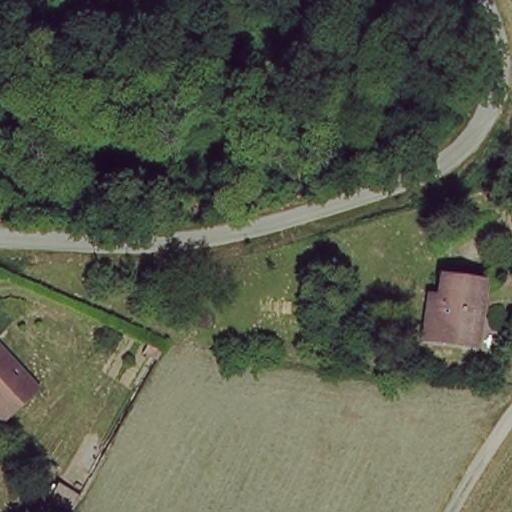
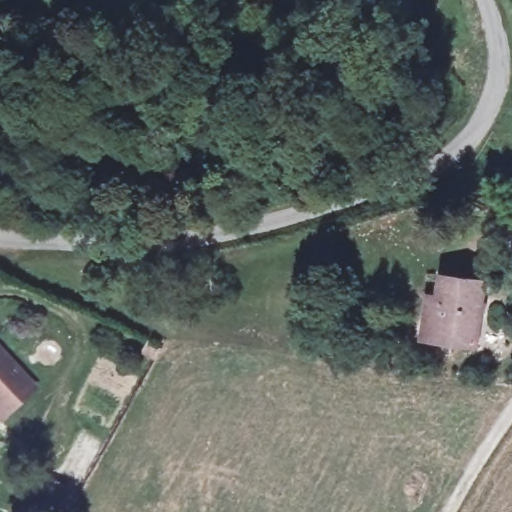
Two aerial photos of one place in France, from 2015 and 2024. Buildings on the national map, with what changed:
unchanged [(426,297),(440,299),(443,275),(483,280),(475,343),(435,338),(422,337),(426,297)]
unchanged [(28,390),(0,417),(0,359),(28,390)]
unchanged [(21,512),(29,495),(58,510),(58,512),(21,512)]

